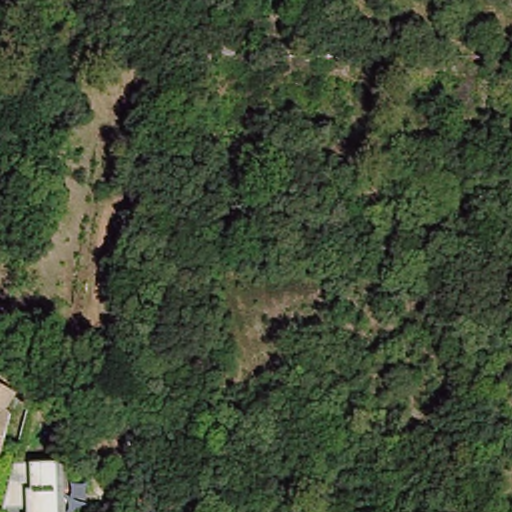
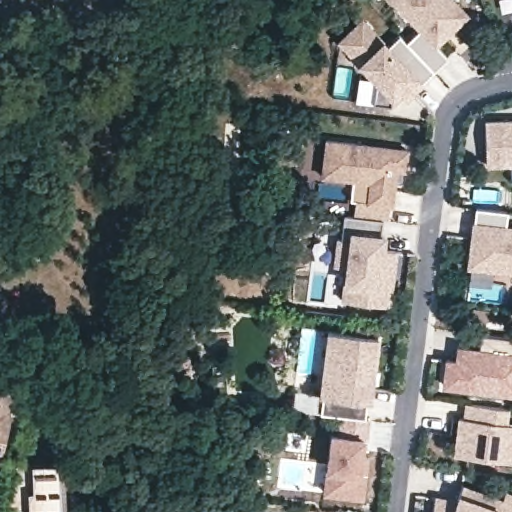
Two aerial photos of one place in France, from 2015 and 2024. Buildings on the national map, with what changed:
new [(435,45),(447,58),(434,70),(406,42),(406,41),(419,29),(391,0),(453,0),(467,15),(435,45)]
new [(362,19),(387,46),(399,34),(406,41),(406,42),(434,70),(405,97),(397,89),(392,95),(389,104),(371,101),(375,77),(340,39),(362,19)]
new [(512,120),(512,162),(485,163),(485,120),(512,120)]
new [(323,174),(328,139),(408,150),(405,170),(397,168),(392,204),(390,204),(388,219),(383,218),(355,215),(357,198),(352,198),(355,178),(323,174)]
new [(472,237),(482,239),(483,228),(473,226),(475,207),(507,211),(505,228),(512,229),(512,272),(468,266),(472,237)]
new [(389,305),(344,299),(348,266),(336,264),(340,237),(343,238),(345,213),(355,215),(383,218),(381,234),(384,235),(382,249),(396,250),(393,271),(392,282),(389,305)]
new [(328,329),(378,336),(369,401),(367,401),(365,417),(342,414),(320,412),(322,395),(320,395),(328,329)]
new [(447,359),(457,360),(459,346),(472,348),(472,351),(479,352),(481,333),(512,337),(512,393),(444,383),(447,359)]
unchanged [(5,406),(10,408),(6,443),(0,444),(0,381),(14,389),(5,406)]
new [(460,416),(465,417),(467,402),(507,407),(506,422),(512,423),(512,461),(455,453),(460,416)]
new [(365,472),(362,496),(324,492),(331,434),(339,435),(342,414),(365,417),(369,418),(366,439),(363,438),(361,455),(367,456),(365,472)]
unchanged [(5,451),(0,451),(0,444),(6,443),(5,451)]
unchanged [(60,458),(63,512),(30,512),(30,505),(2,507),(14,461),(60,458)]
new [(437,496),(459,501),(465,486),(502,500),(497,512),(434,512),(437,496)]
new [(506,488),(512,490),(512,512),(497,512),(502,500),(506,488)]

